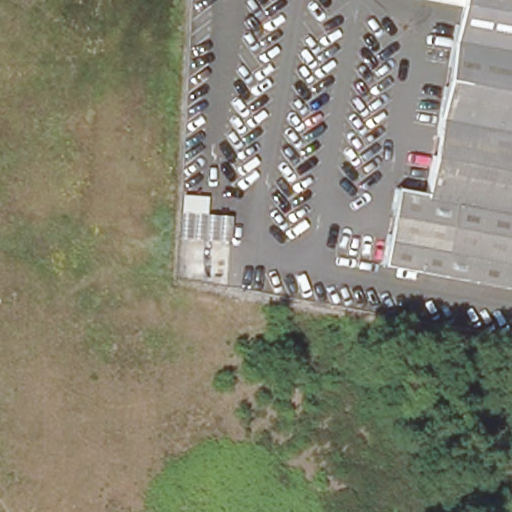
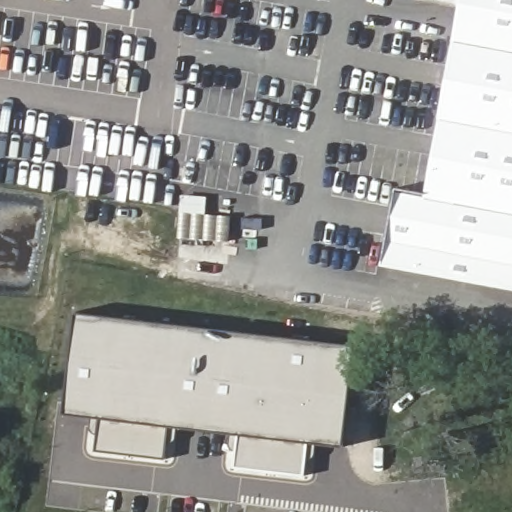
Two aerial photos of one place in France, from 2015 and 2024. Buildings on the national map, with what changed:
unchanged [(389,188),(421,192),(454,5),(417,0),(512,0),(512,289),(374,266),(389,188)]
new [(354,345),(344,445),(304,442),(302,475),(235,468),(237,434),(166,426),(163,459),(97,449),(101,415),(65,411),(75,313),(354,345)]

